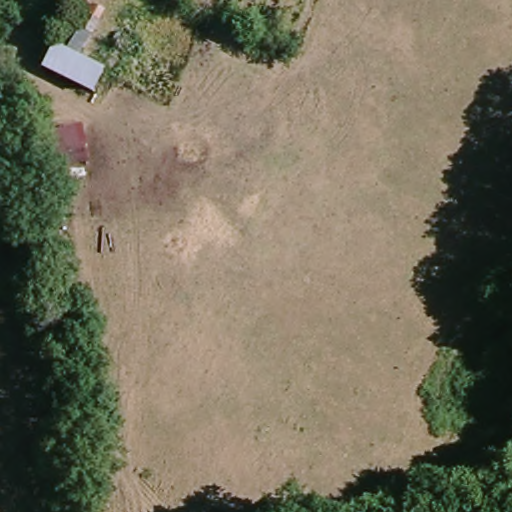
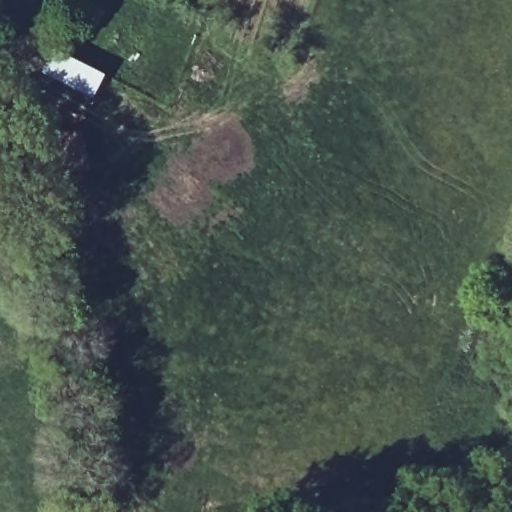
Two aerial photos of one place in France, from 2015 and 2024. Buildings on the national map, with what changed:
unchanged [(96,6),(104,11),(99,20),(91,15),(96,6)]
unchanged [(110,68),(99,92),(49,71),(60,46),(107,66),(110,68)]
unchanged [(52,181),(41,140),(86,127),(94,169),(52,181)]

